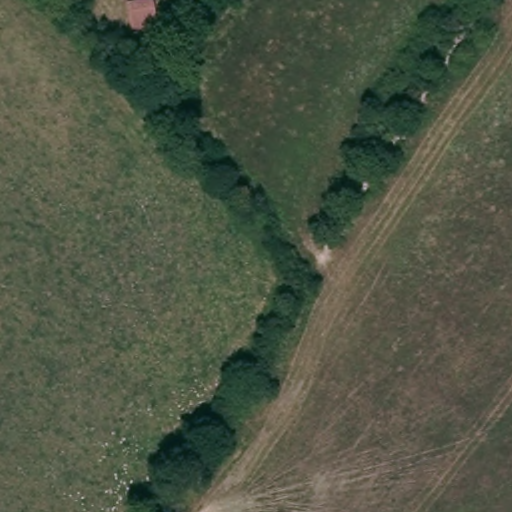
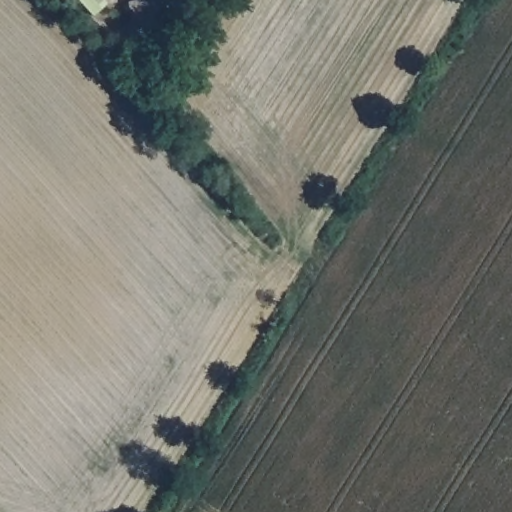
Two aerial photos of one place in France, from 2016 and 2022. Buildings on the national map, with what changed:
unchanged [(139,23),(136,5),(135,0),(161,0),(161,1),(164,19),(139,23)]

